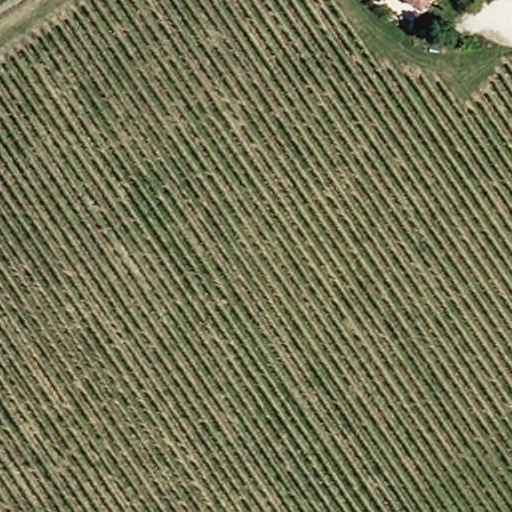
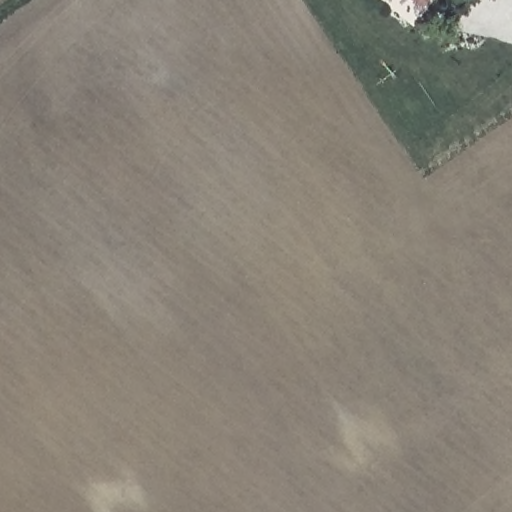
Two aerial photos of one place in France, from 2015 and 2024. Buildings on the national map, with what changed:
unchanged [(416,11),(401,0),(425,0),(416,11)]

